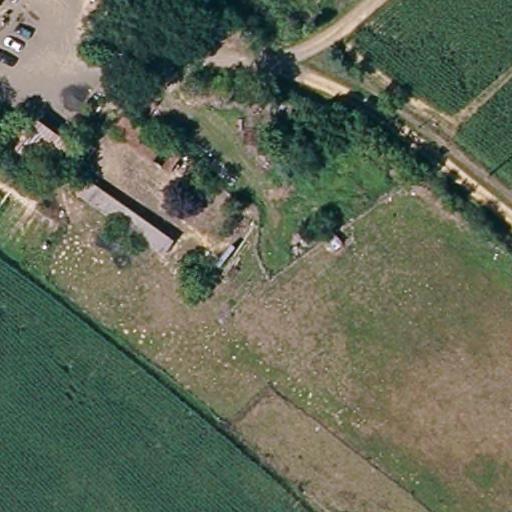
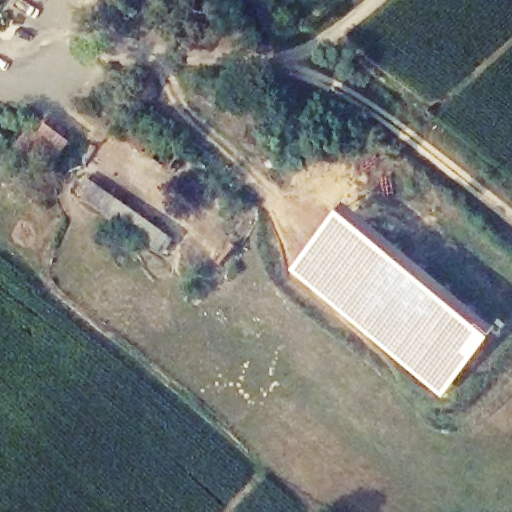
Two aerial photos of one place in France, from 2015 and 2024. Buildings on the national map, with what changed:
unchanged [(0,0),(2,0),(0,2),(0,0)]
unchanged [(182,158),(171,170),(118,124),(129,111),(182,158)]
unchanged [(179,245),(167,259),(82,187),(95,172),(179,245)]
new [(503,333),(444,399),(289,270),(347,204),(503,333)]

